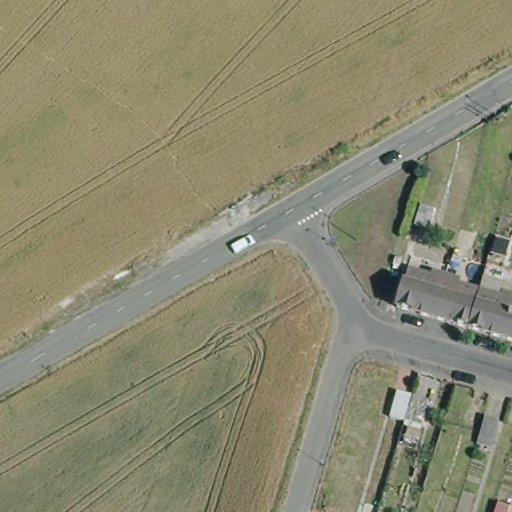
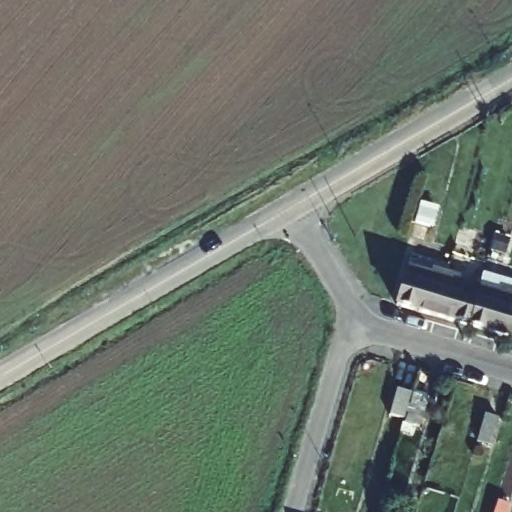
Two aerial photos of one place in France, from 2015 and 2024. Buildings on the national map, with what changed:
unchanged [(433,314),(397,304),(396,304),(409,266),(432,273),(434,267),(445,270),(433,314)]
unchanged [(469,325),(433,314),(445,270),(457,274),(456,279),(480,287),(469,325)]
unchanged [(502,334),(469,325),(480,287),(502,293),(504,288),(512,291),(512,305),(503,335),(502,334)]
unchanged [(512,305),(512,338),(503,335),(512,305)]
unchanged [(405,417),(392,413),(399,387),(413,392),(426,396),(419,422),(405,417)]
unchanged [(502,417),(495,442),(481,438),(488,413),(502,417)]

